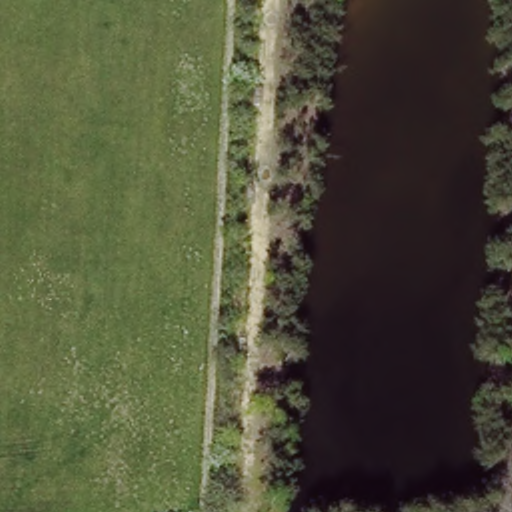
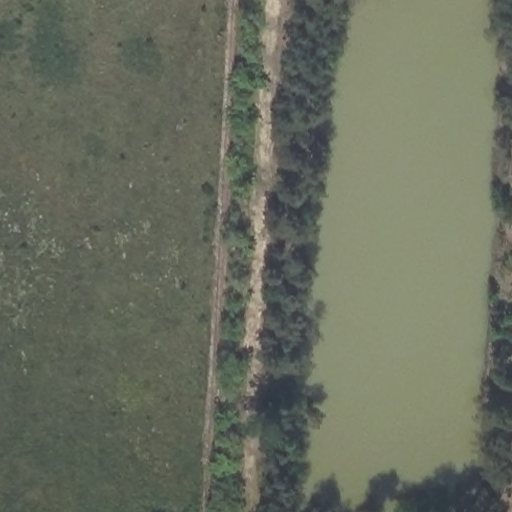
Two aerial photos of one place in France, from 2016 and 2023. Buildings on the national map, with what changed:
[]

